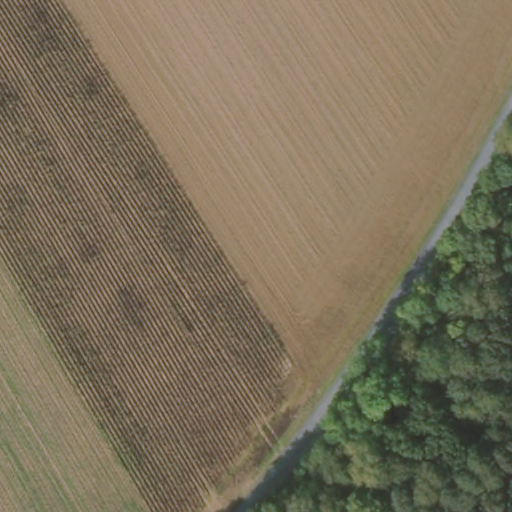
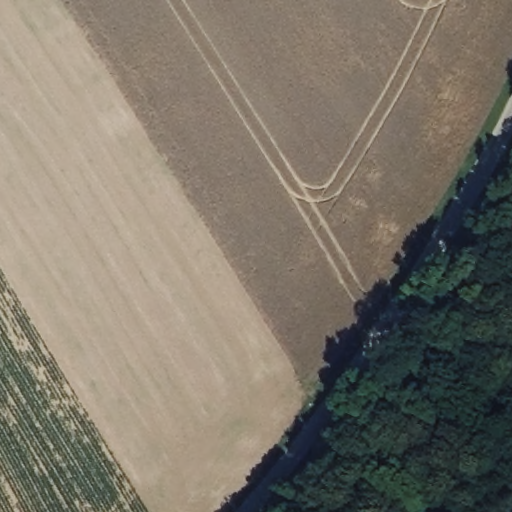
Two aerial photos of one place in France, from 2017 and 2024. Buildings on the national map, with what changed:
unchanged [(512,203),(512,205),(511,204),(512,203)]

